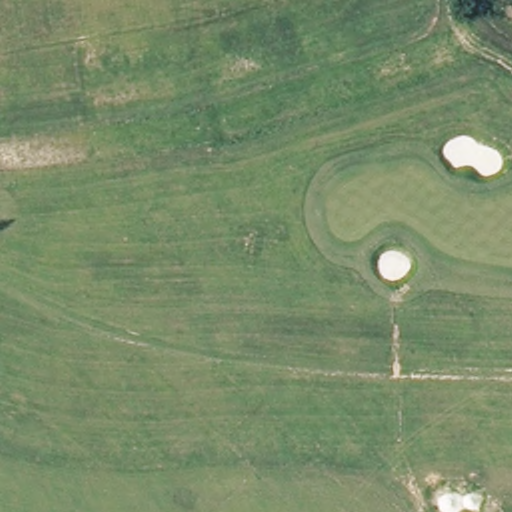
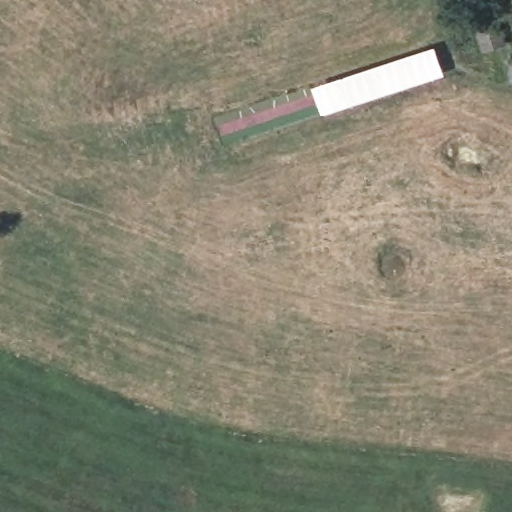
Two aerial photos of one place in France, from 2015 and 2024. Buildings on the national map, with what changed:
new [(443,74),(322,114),(312,84),(434,44),(443,74)]

